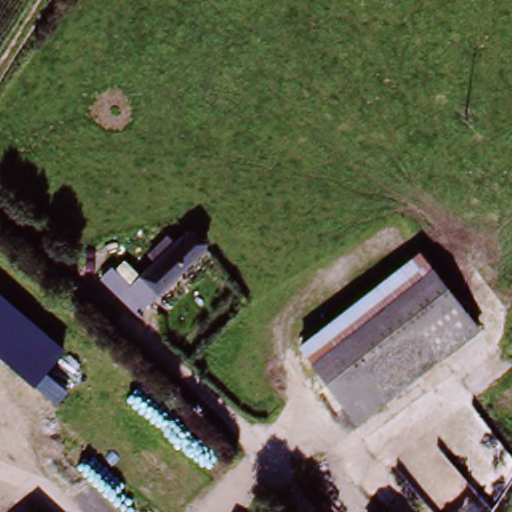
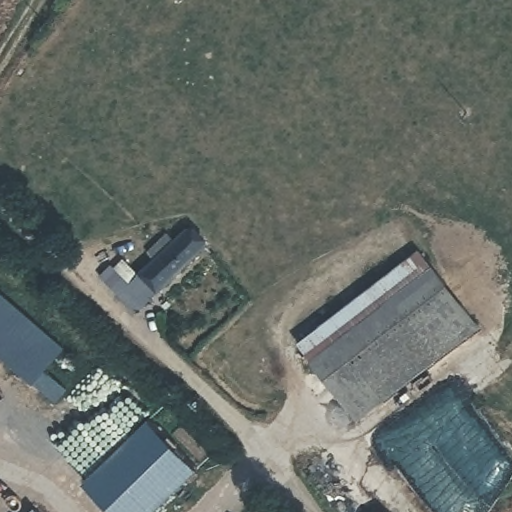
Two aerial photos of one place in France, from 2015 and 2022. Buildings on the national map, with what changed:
unchanged [(137,268),(140,264),(127,250),(161,219),(177,238),(155,257),(160,263),(145,277),(137,268)]
unchanged [(155,257),(177,238),(182,243),(193,232),(210,251),(152,306),(134,288),(145,277),(160,263),(155,257)]
unchanged [(345,318),(426,257),(437,273),(357,334),(345,318)]
unchanged [(357,334),(437,273),(468,316),(390,376),(357,334)]
unchanged [(35,384),(0,354),(0,293),(65,348),(35,384)]
unchanged [(390,376),(348,407),(303,349),(345,318),(357,334),(390,376)]
new [(152,512),(114,512),(85,480),(148,417),(200,467),(152,512)]
unchanged [(41,512),(38,512),(40,510),(41,512)]

